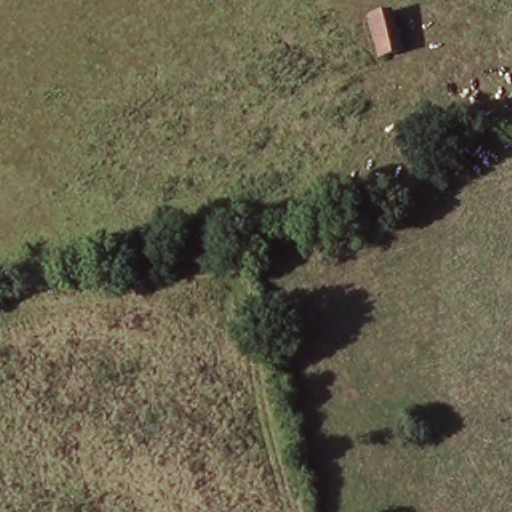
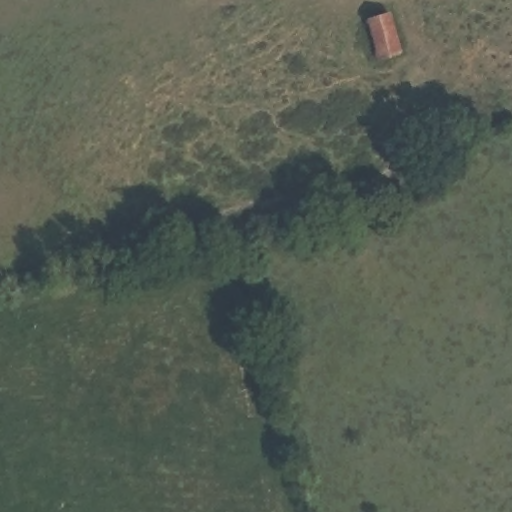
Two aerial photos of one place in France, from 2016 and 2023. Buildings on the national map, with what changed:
unchanged [(379,9),(394,49),(377,56),(359,15),(379,9)]

